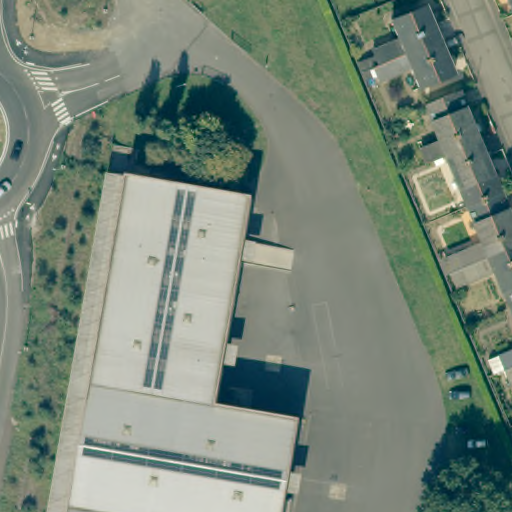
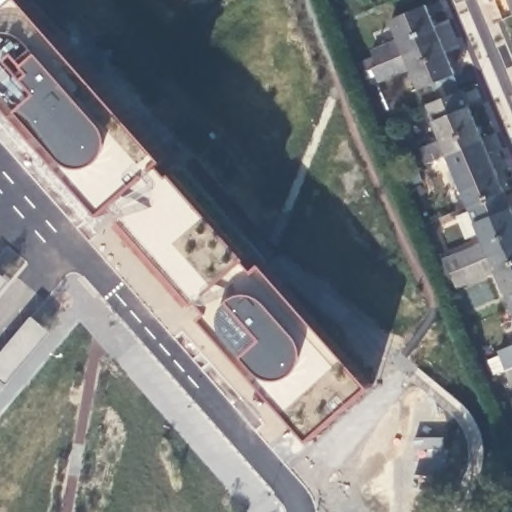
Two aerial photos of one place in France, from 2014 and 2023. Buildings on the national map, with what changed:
unchanged [(360,68),(357,61),(373,54),(370,46),(398,35),(390,17),(425,2),(439,35),(360,68)]
unchanged [(454,70),(418,84),(410,64),(376,78),(373,71),(363,75),(360,68),(439,35),(454,70)]
unchanged [(482,138),(446,153),(425,161),(419,146),(441,137),(425,100),(460,86),(482,138)]
unchanged [(503,187),(468,201),(446,153),(482,138),(503,187)]
demolished [(132,172),(259,197),(220,404),(303,420),(287,512),(74,512),(132,172)]
unchanged [(512,245),(453,269),(447,254),(484,239),(468,201),(503,187),(512,207),(512,245)]
unchanged [(495,267),(457,282),(453,269),(512,245),(512,302),(510,302),(495,267)]
unchanged [(512,302),(512,306),(510,302),(512,302)]
unchanged [(494,368),(488,353),(512,343),(512,361),(506,363),(494,368)]
unchanged [(512,361),(512,376),(506,363),(512,361)]

